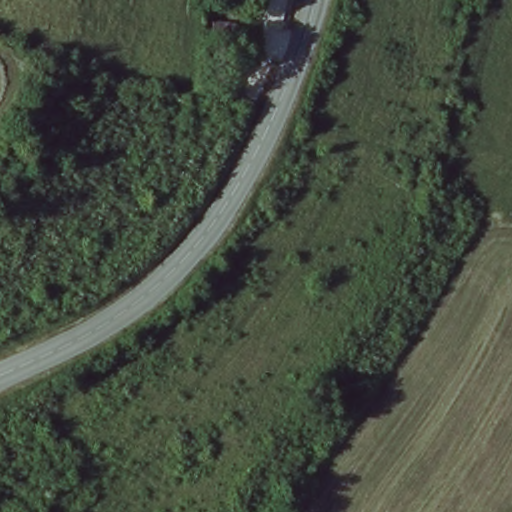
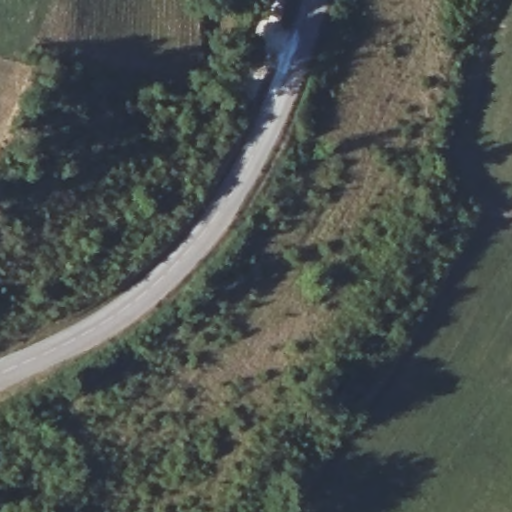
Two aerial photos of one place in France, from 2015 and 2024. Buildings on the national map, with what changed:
unchanged [(241,25),(238,58),(207,57),(207,19),(241,25)]

